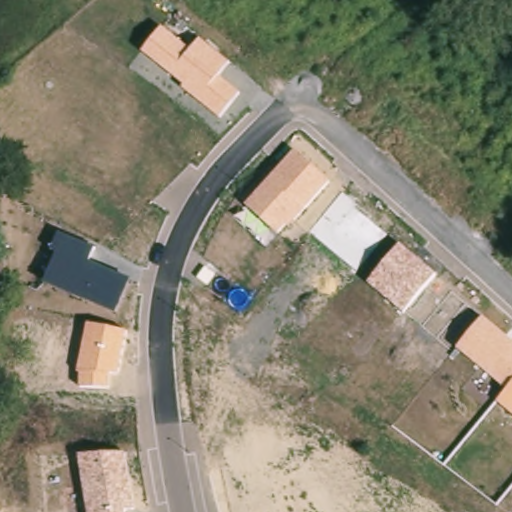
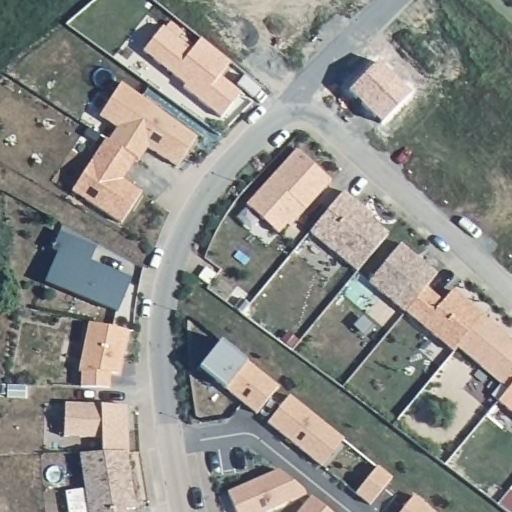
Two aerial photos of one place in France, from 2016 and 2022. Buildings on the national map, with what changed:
unchanged [(181,89),(184,85),(142,51),(162,26),(190,49),(199,39),(229,63),(219,76),(240,94),(220,119),(181,89)]
new [(120,84),(195,138),(177,167),(146,147),(137,160),(135,159),(108,141),(116,128),(98,116),(120,84)]
new [(104,139),(108,141),(135,159),(125,174),(121,170),(117,177),(140,193),(120,224),(70,192),(104,139)]
unchanged [(296,149),(329,180),(287,228),(284,225),(277,233),(246,204),(296,149)]
new [(357,204),(372,217),(369,219),(387,234),(357,271),(309,232),(342,192),(357,204)]
unchanged [(44,282),(56,253),(49,250),(58,233),(95,248),(90,263),(130,281),(116,314),(44,282)]
unchanged [(400,244),(436,274),(404,312),(368,283),(400,244)]
new [(452,352),(404,312),(425,288),(444,302),(452,292),(484,316),(456,347),(452,352)]
unchanged [(512,339),(512,414),(497,401),(507,389),(456,347),(484,316),(512,339)]
unchanged [(81,374),(77,374),(88,323),(127,332),(118,376),(110,375),(109,388),(80,387),(81,374)]
new [(220,342),(277,388),(255,414),(198,368),(220,342)]
new [(320,467),(315,462),(266,424),(288,397),(336,436),(342,440),(320,467)]
new [(101,439),(62,437),(63,404),(125,405),(126,453),(101,454),(101,439)]
unchanged [(78,455),(126,453),(135,511),(125,512),(87,512),(78,455)]
new [(376,468),(390,479),(369,506),(354,494),(376,468)]
new [(278,471),(302,491),(305,496),(267,512),(235,512),(227,493),(278,471)]
new [(310,497),(325,509),(329,512),(298,512),(310,497)]
new [(412,497),(432,512),(400,512),(412,497)]

